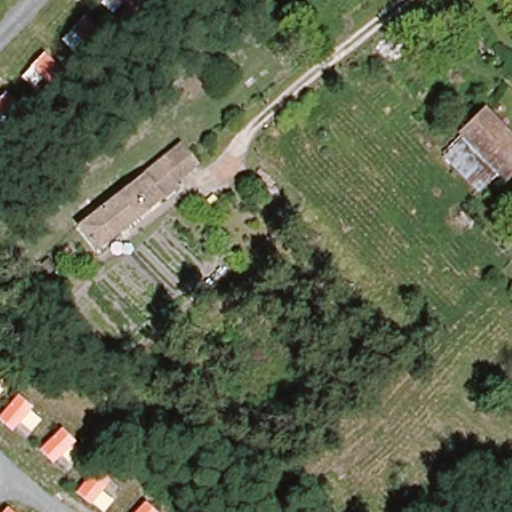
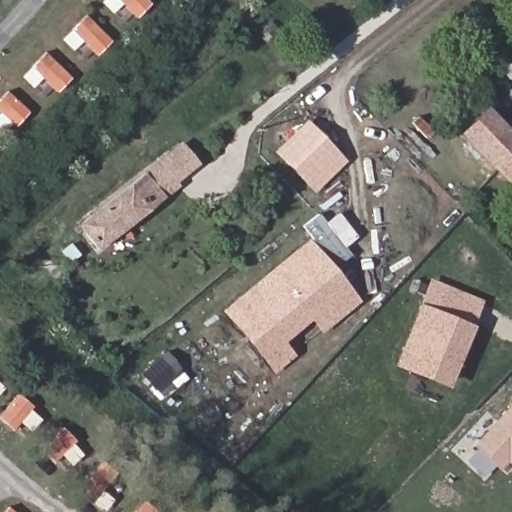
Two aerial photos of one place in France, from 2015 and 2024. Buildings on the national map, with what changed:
unchanged [(143,0),(130,16),(119,5),(112,13),(102,3),(105,0),(143,0)]
unchanged [(81,20),(106,38),(95,52),(83,43),(76,52),(64,42),(81,20)]
unchanged [(40,58),(64,76),(56,91),(42,79),(34,87),(24,80),(40,58)]
unchanged [(505,180),(462,137),(486,116),(512,141),(512,174),(505,180)]
new [(313,195),(272,152),(306,120),(347,163),(313,195)]
unchanged [(143,165),(152,160),(166,152),(177,146),(197,165),(176,183),(179,186),(105,253),(83,230),(141,166),(143,165)]
new [(318,215),(325,223),(337,212),(356,237),(344,247),(351,256),(334,267),(302,227),(318,215)]
new [(272,374),(222,312),(306,240),(360,302),(321,333),(311,320),(283,342),(295,356),(272,374)]
new [(484,302),(447,388),(393,366),(429,279),(484,302)]
new [(162,401),(140,374),(166,352),(188,379),(162,401)]
unchanged [(0,394),(0,384),(4,389),(0,394)]
unchanged [(44,420),(35,433),(21,423),(13,432),(0,419),(0,417),(18,396),(44,420)]
new [(509,458),(501,467),(479,445),(512,410),(512,460),(509,458)]
unchanged [(83,449),(72,462),(64,456),(54,465),(39,453),(61,428),(83,449)]
unchanged [(98,467),(116,478),(104,493),(114,500),(105,512),(103,512),(76,493),(98,467)]
unchanged [(139,507),(148,512),(136,512),(139,507)]
unchanged [(14,512),(5,512),(9,508),(14,512)]

